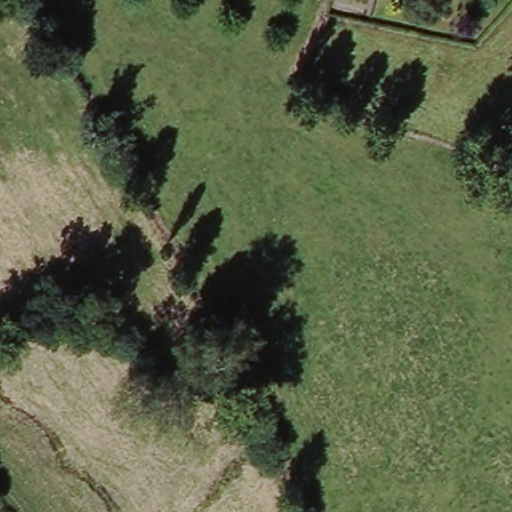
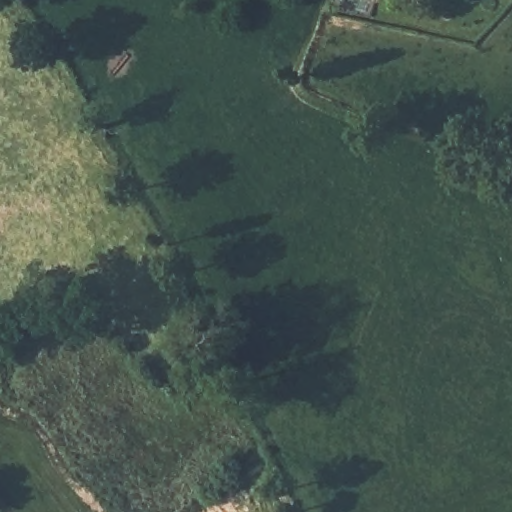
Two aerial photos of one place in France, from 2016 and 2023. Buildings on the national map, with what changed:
[]

